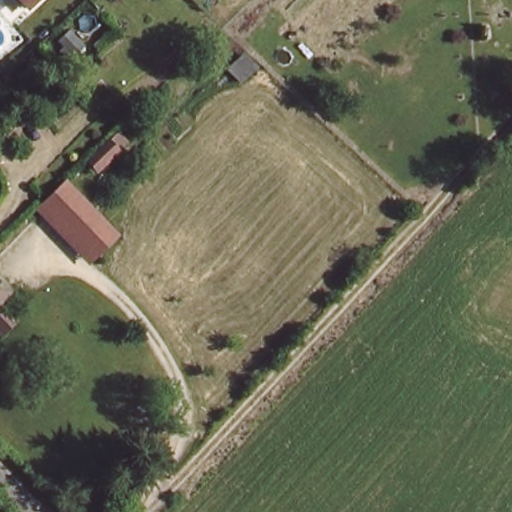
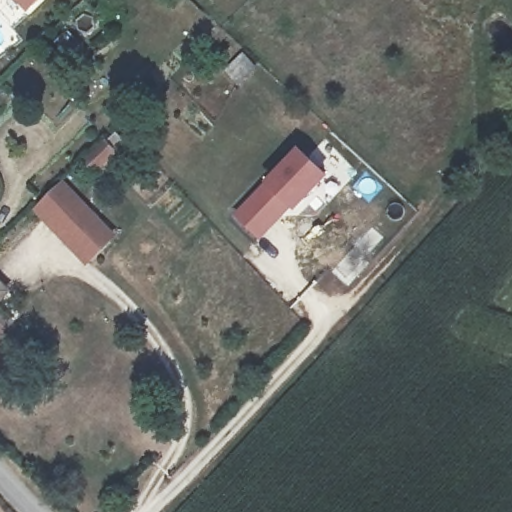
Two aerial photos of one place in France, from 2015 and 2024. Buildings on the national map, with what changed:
unchanged [(26,0),(43,0),(35,8),(26,0)]
new [(296,210),(292,207),(260,240),(234,214),(266,182),(264,181),(299,147),(328,176),(296,210)]
unchanged [(88,266),(34,210),(64,178),(118,233),(88,266)]
unchanged [(0,311),(0,273),(19,293),(0,311)]

